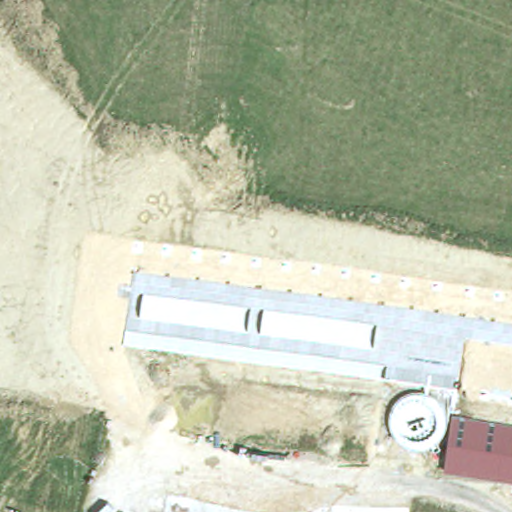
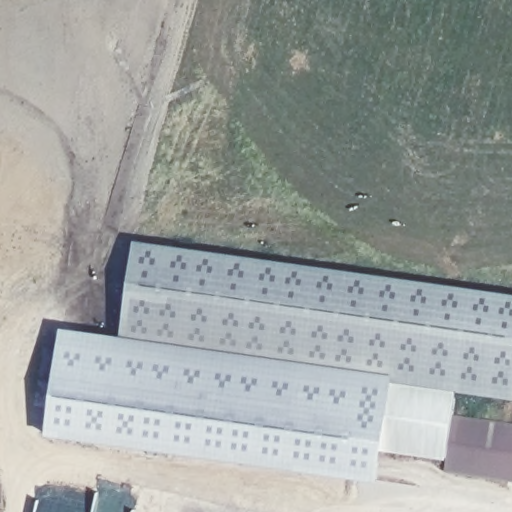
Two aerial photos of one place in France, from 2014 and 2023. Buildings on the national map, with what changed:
new [(390,381),(120,344),(132,239),(512,293),(512,398),(456,390),(390,381)]
new [(395,381),(385,450),(381,481),(49,434),(64,326),(122,335),(396,373),(395,381)]
new [(380,451),(390,381),(456,390),(453,416),(446,459),(380,451)]
new [(446,459),(453,416),(512,423),(512,481),(444,471),(446,459)]

